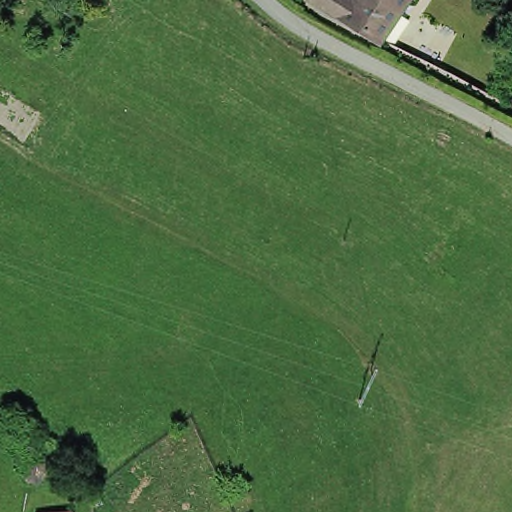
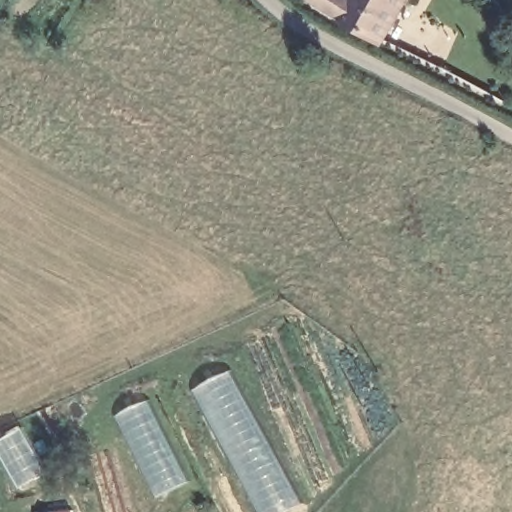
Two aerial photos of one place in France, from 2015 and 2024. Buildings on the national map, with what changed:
unchanged [(313,0),(408,0),(384,41),(313,0)]
new [(192,390),(232,369),(303,505),(289,512),(257,512),(192,390)]
new [(189,483),(157,500),(114,417),(148,400),(189,483)]
unchanged [(30,500),(77,500),(77,512),(31,512),(30,500)]

